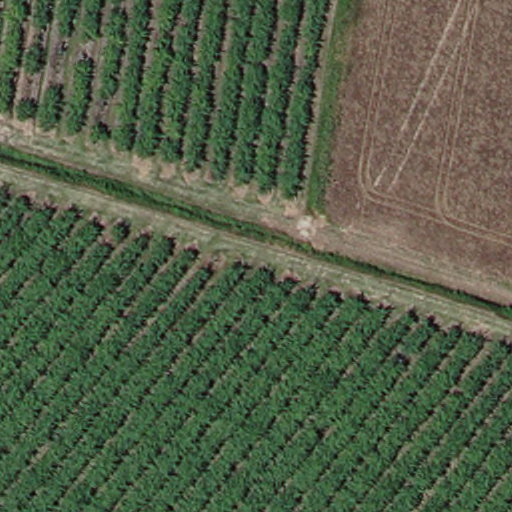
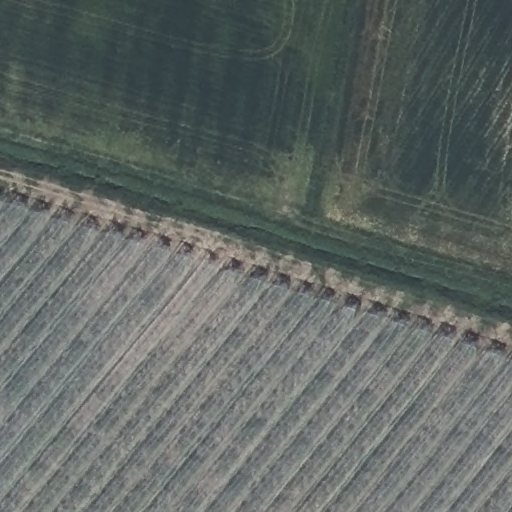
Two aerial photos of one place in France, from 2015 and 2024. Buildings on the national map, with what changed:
[]

